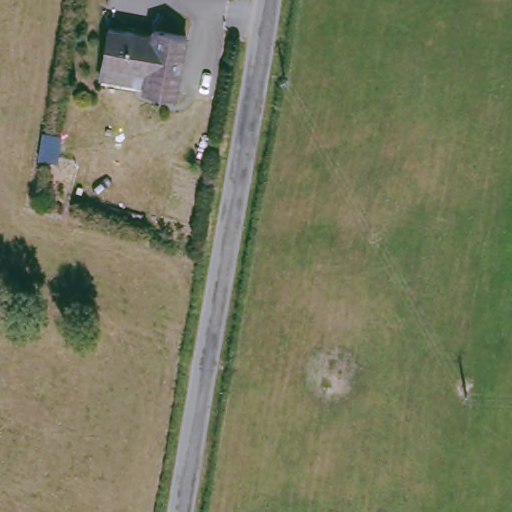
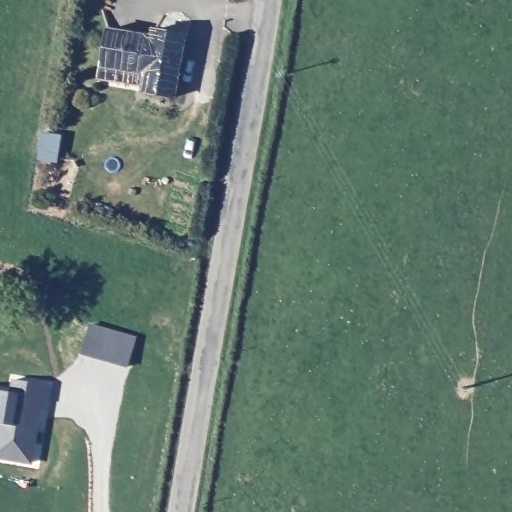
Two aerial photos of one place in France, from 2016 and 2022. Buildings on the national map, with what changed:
unchanged [(150,40),(150,35),(180,39),(171,100),(140,95),(142,79),(101,72),(107,33),(150,40)]
new [(89,326),(134,337),(127,368),(80,352),(89,326)]
new [(0,458),(0,390),(10,392),(12,378),(47,384),(32,464),(0,458)]

